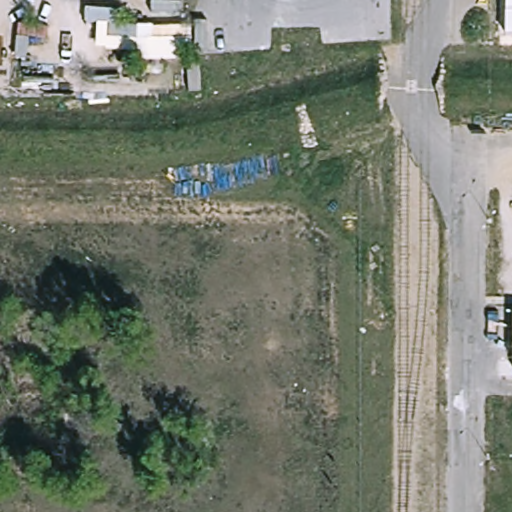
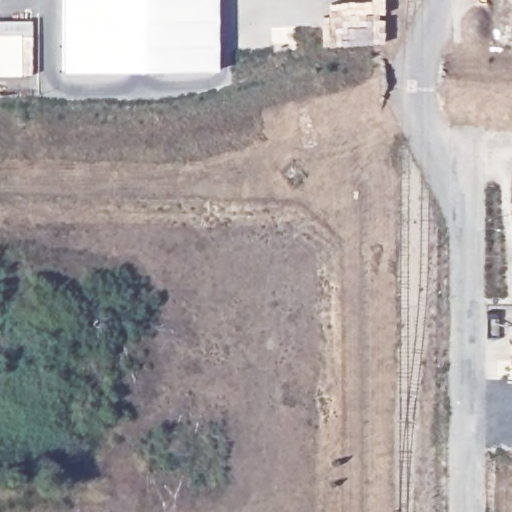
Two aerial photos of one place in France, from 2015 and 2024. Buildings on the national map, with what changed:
new [(217,72),(63,74),(62,0),(217,0),(217,72)]
new [(30,77),(20,77),(0,77),(0,23),(31,22),(30,77)]
demolished [(194,59),(138,59),(139,24),(193,22),(194,59)]

